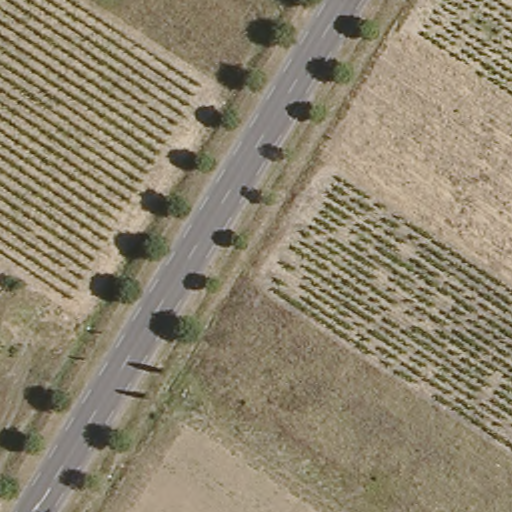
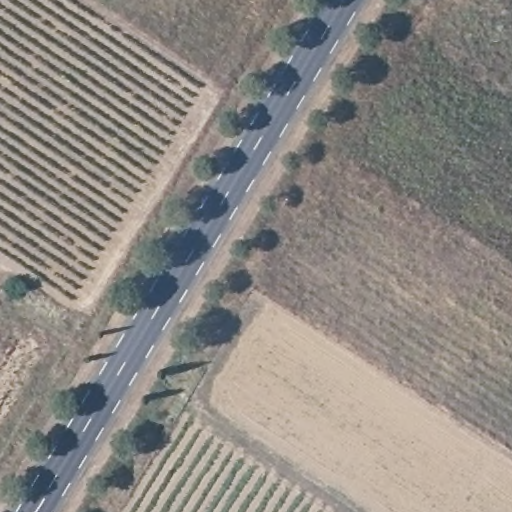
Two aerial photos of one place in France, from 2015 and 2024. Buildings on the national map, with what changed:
[]

